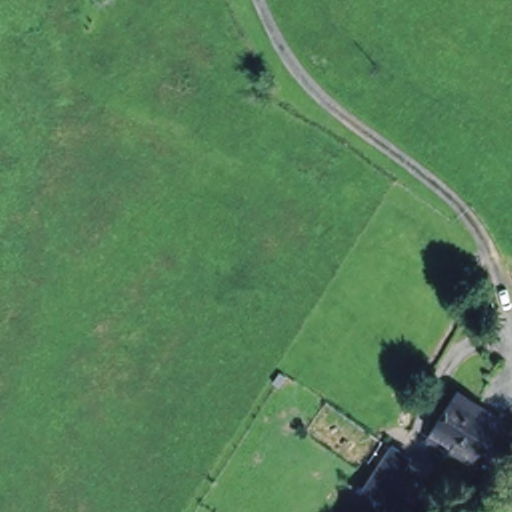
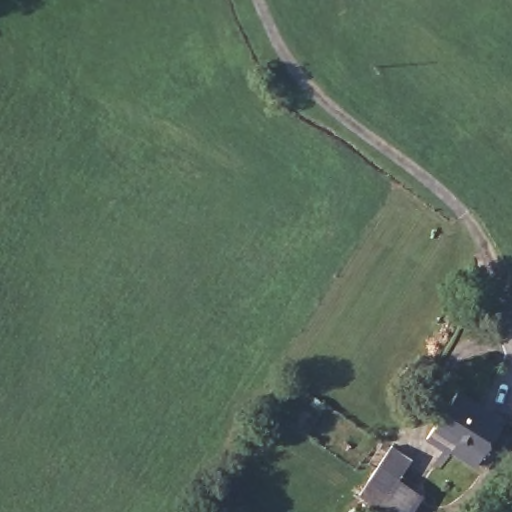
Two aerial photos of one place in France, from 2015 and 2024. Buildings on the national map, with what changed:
unchanged [(476,462),(451,442),(444,449),(426,435),(458,390),(504,425),(476,462)]
unchanged [(390,426),(392,428),(408,439),(394,462),(377,488),(358,476),(390,426)]
unchanged [(418,478),(396,512),(390,512),(371,498),(377,488),(394,462),(418,478)]

